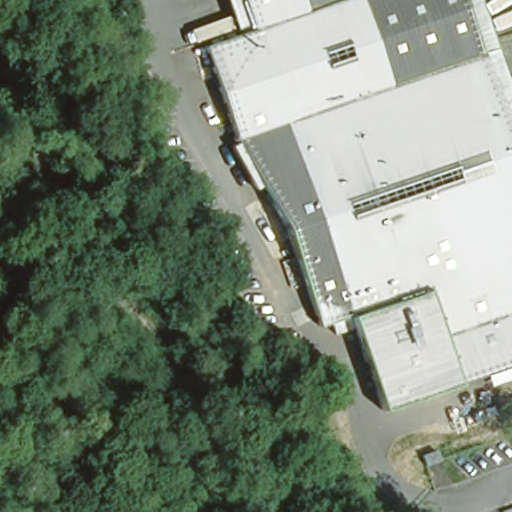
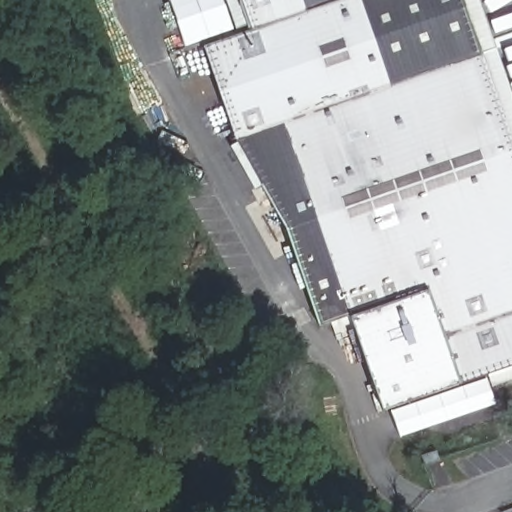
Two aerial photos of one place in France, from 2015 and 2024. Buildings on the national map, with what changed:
new [(234,29),(185,46),(170,0),(223,0),(234,29)]
unchanged [(512,138),(512,362),(390,408),(353,313),(327,323),(294,232),(269,190),(256,198),(227,148),(238,141),(203,49),(249,31),(237,0),(459,0),(512,138)]
unchanged [(512,93),(512,138),(459,0),(477,0),(512,93)]
unchanged [(437,458),(442,469),(426,475),(422,464),(437,458)]

